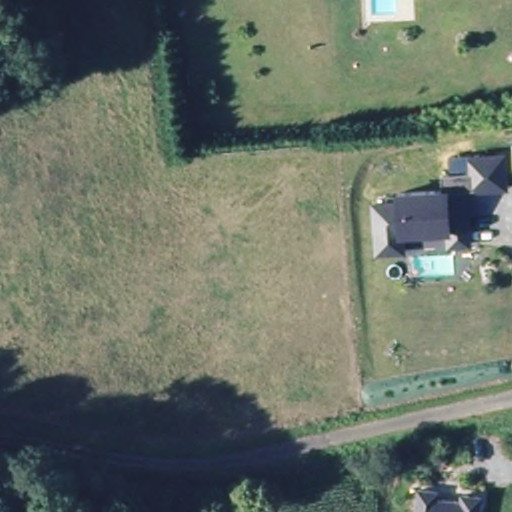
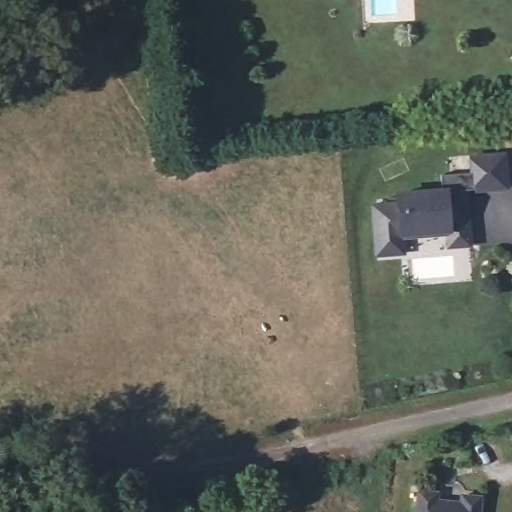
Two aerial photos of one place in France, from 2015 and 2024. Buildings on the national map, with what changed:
unchanged [(452,245),(450,231),(404,234),(405,252),(380,254),(375,207),(400,205),(399,195),(443,192),(442,175),(474,172),(473,158),(505,156),(508,187),(461,191),(462,206),(468,205),(470,229),(471,244),(452,245)]
unchanged [(439,493),(439,502),(464,502),(465,496),(483,496),(482,512),(419,512),(420,493),(439,493)]

